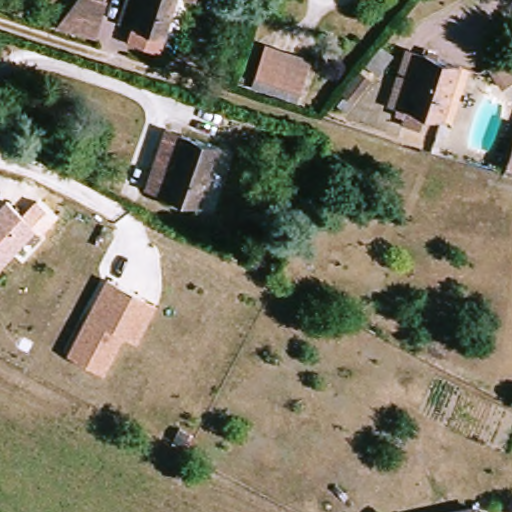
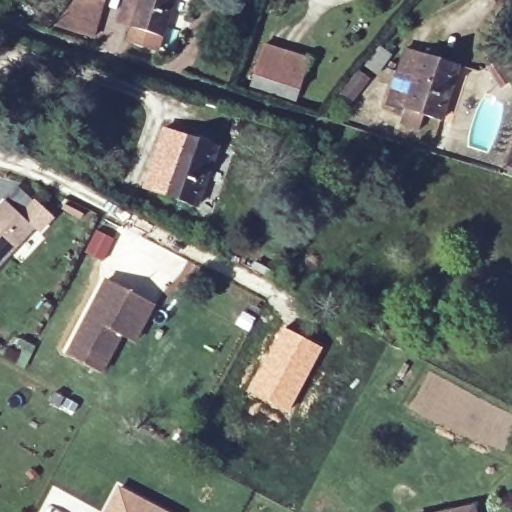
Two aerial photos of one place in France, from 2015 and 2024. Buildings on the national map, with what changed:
unchanged [(63,27),(80,0),(114,0),(102,36),(63,27)]
unchanged [(130,0),(184,0),(167,52),(138,44),(143,25),(124,20),(129,2),(130,0)]
unchanged [(397,105),(415,47),(434,53),(416,110),(397,105)]
unchanged [(305,94),(291,89),(259,78),(270,48),(302,59),(316,64),(305,94)]
unchanged [(416,110),(434,53),(466,63),(449,120),(416,110)]
unchanged [(155,171),(168,131),(220,148),(203,205),(167,194),(150,189),(155,171)]
unchanged [(7,200),(37,228),(0,268),(0,207),(7,200)]
unchanged [(68,354),(107,278),(158,304),(139,344),(124,337),(106,374),(68,354)]
new [(282,325),(323,347),(288,413),(246,390),(282,325)]
new [(159,508),(166,512),(112,512),(124,490),(159,508)]
unchanged [(482,502),(484,512),(431,512),(482,502)]

